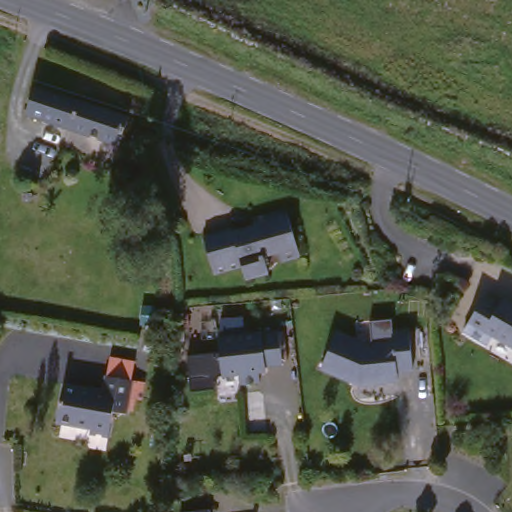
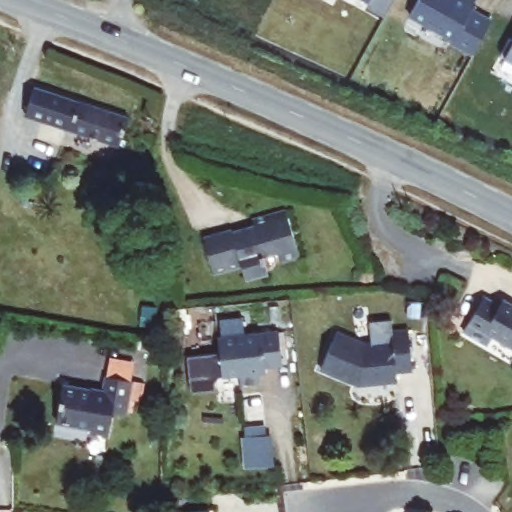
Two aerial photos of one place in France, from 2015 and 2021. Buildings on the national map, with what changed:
unchanged [(364,0),(369,0),(368,2),(364,0)]
new [(474,0),(470,8),(491,19),(472,54),(450,42),(452,39),(409,15),(417,0),(474,0)]
new [(512,39),(512,61),(500,54),(509,38),(512,39)]
unchanged [(121,148),(73,133),(73,131),(28,117),(38,86),(57,93),(130,116),(121,148)]
unchanged [(264,259),(266,274),(245,278),(241,264),(213,271),(204,232),(233,226),(234,232),(257,227),(255,219),(290,211),(302,259),(278,264),(278,256),(264,259)]
unchanged [(484,342),(463,330),(483,294),(495,301),(499,293),(512,300),(512,344),(489,333),(484,342)]
unchanged [(279,329),(283,363),(266,365),(261,371),(259,371),(261,382),(241,384),(240,373),(223,375),(218,336),(279,329)]
unchanged [(366,341),(413,339),(418,379),(359,384),(321,371),(341,332),(366,341)]
unchanged [(58,425),(63,386),(103,391),(104,375),(133,379),(128,413),(114,411),(111,438),(93,435),(93,430),(58,425)]

